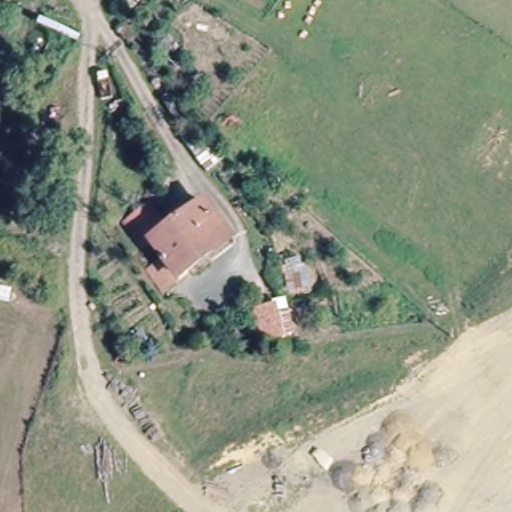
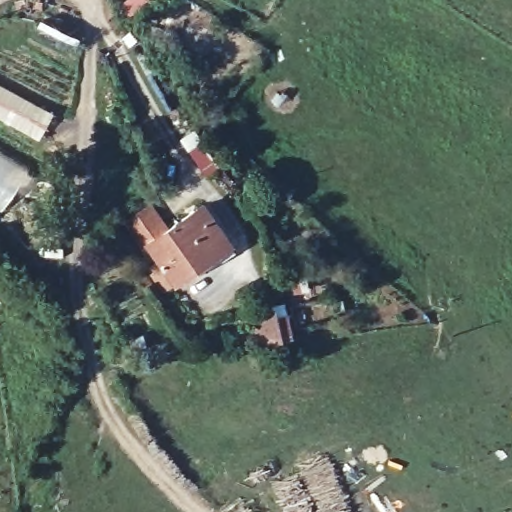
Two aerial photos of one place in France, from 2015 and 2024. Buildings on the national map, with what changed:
new [(44,117),(35,113),(32,117),(0,102),(0,83),(49,108),(44,117)]
new [(47,125),(40,140),(0,119),(0,102),(32,117),(47,125)]
unchanged [(142,270),(164,259),(151,244),(139,252),(122,223),(150,206),(162,224),(205,198),(231,240),(178,277),(160,294),(142,270)]
unchanged [(277,315),(287,313),(293,338),(263,346),(259,326),(252,326),(249,310),(277,305),(277,315)]

